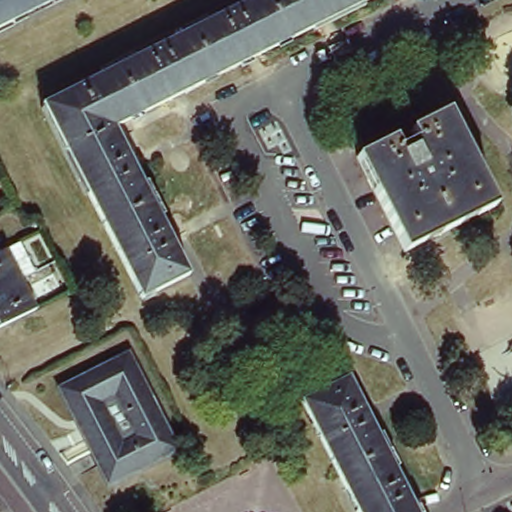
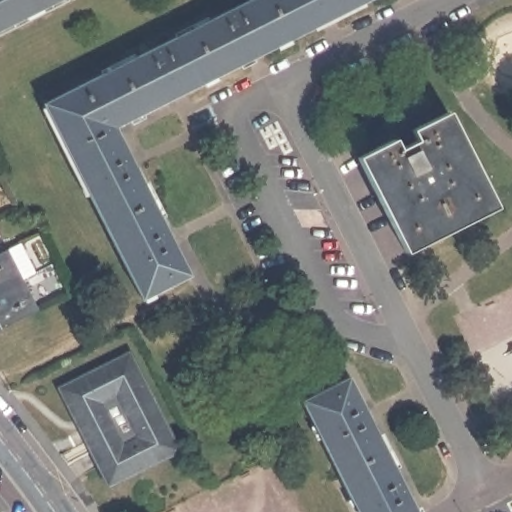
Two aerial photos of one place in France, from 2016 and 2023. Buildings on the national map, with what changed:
unchanged [(0,0),(57,0),(0,29),(0,0)]
unchanged [(368,0),(115,127),(190,275),(141,300),(44,105),(250,0),(368,0)]
unchanged [(447,112),(495,206),(405,252),(356,157),(393,139),(398,149),(416,140),(411,130),(447,112)]
unchanged [(34,272),(21,279),(29,293),(37,310),(0,330),(0,252),(19,243),(34,272)]
unchanged [(78,422),(61,389),(126,356),(149,398),(151,397),(178,452),(112,484),(89,438),(81,421),(78,422)]
unchanged [(299,401),(350,374),(419,512),(356,512),(299,401)]

